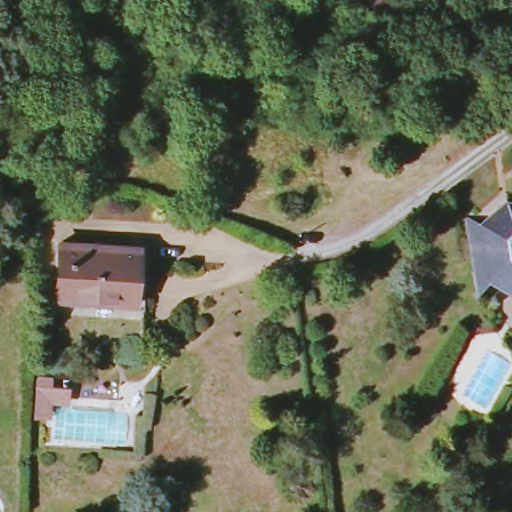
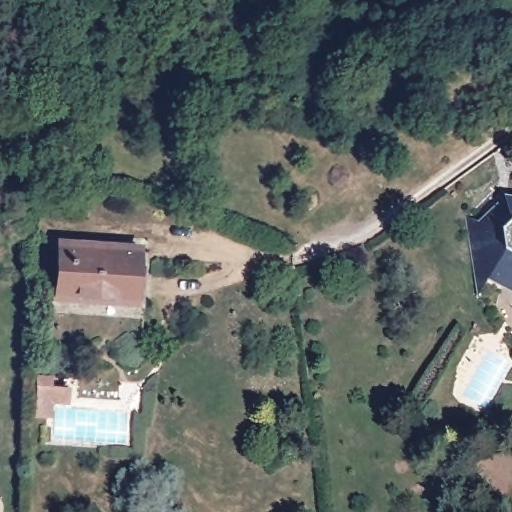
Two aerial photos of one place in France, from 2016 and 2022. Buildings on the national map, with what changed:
unchanged [(481,298),(467,216),(480,222),(505,199),(512,200),(512,286),(490,273),(481,298)]
unchanged [(58,295),(61,240),(107,242),(108,235),(130,236),(130,244),(141,244),(137,300),(58,295)]
unchanged [(53,376),(53,383),(68,385),(68,408),(55,410),(54,418),(33,418),(36,375),(53,376)]

